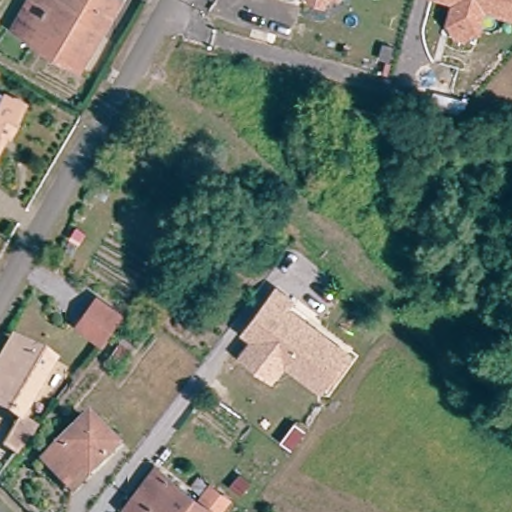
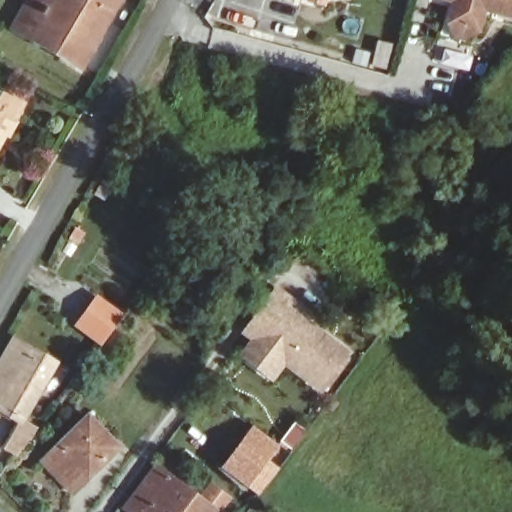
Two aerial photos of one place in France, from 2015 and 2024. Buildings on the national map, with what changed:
unchanged [(13,28),(29,0),(122,0),(82,69),(13,28)]
unchanged [(317,0),(323,0),(322,1),(317,0)]
unchanged [(454,22),(460,1),(459,0),(512,0),(512,15),(489,9),(483,31),(472,40),(458,36),(454,22)]
unchanged [(1,106),(10,90),(16,94),(28,100),(14,127),(0,152),(0,106),(1,106)]
unchanged [(255,339),(245,331),(247,328),(277,288),(292,299),(287,306),(348,351),(322,388),(285,361),(283,364),(273,378),(242,356),(252,342),(255,339)]
unchanged [(112,329),(103,340),(79,322),(98,296),(122,314),(112,329)]
unchanged [(25,421),(37,429),(17,455),(4,448),(20,421),(0,409),(0,363),(14,340),(57,365),(25,421)]
unchanged [(64,484),(42,462),(90,416),(121,447),(89,479),(74,494),(64,484)]
new [(252,424),(280,446),(270,459),(280,468),(257,497),(218,468),(252,424)]
unchanged [(126,508),(156,467),(198,498),(209,484),(229,499),(220,512),(217,512),(216,512),(131,512),(126,508)]

